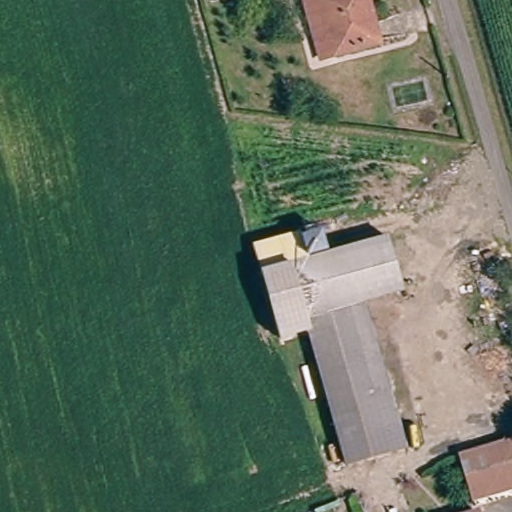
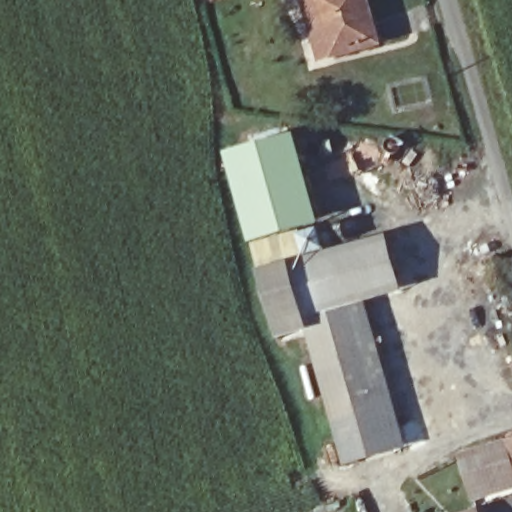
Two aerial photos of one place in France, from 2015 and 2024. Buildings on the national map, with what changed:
unchanged [(213,3),(212,0),(234,0),(237,12),(225,15),(222,3),(213,3)]
unchanged [(309,0),(369,0),(382,41),(326,59),(307,1),(309,0)]
new [(297,134),(322,226),(304,231),(305,235),(323,230),(330,252),(308,257),(290,262),(291,267),(262,276),(255,245),(253,245),(227,153),(297,134)]
unchanged [(281,343),(262,276),(291,267),(290,262),(388,236),(405,293),(368,302),(305,320),(310,337),(281,343)]
unchanged [(310,337),(305,320),(368,302),(408,447),(347,465),(310,337)]
unchanged [(506,440),(512,438),(512,491),(476,503),(460,454),(506,440)]
unchanged [(479,509),(480,512),(470,512),(479,509)]

